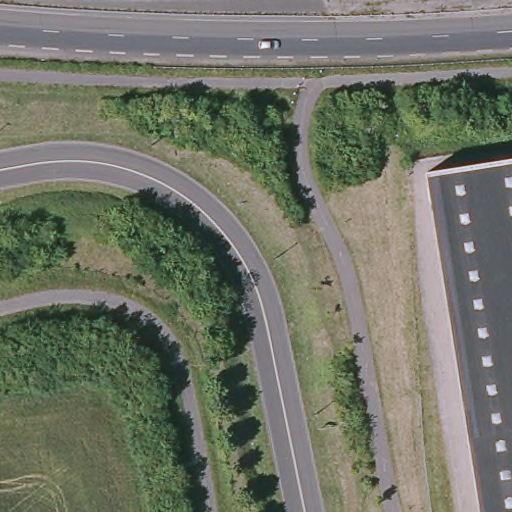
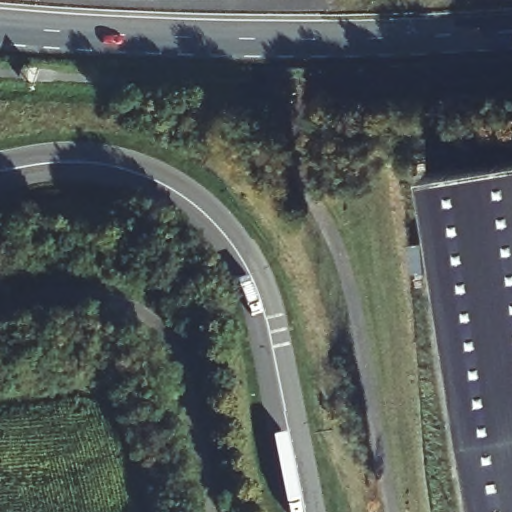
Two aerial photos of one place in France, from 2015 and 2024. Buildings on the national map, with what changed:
unchanged [(512,152),(512,512),(482,512),(425,166),(512,152)]

